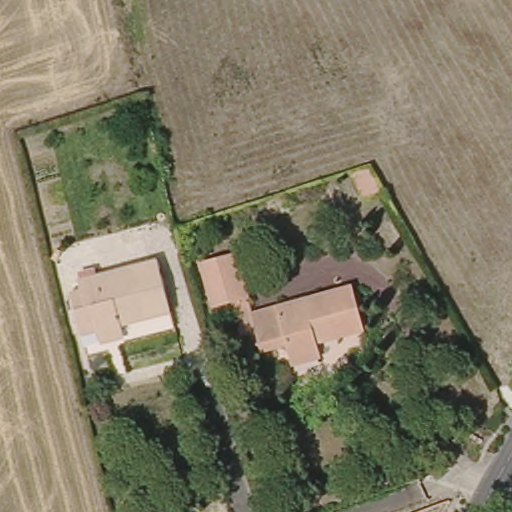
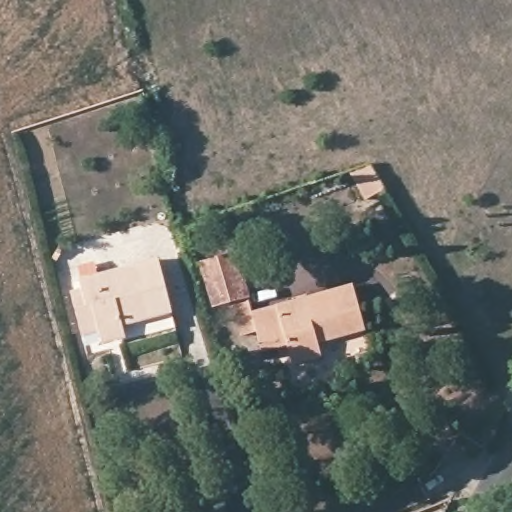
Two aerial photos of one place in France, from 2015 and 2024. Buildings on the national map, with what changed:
unchanged [(389,174),(371,185),(354,157),(373,150),(389,174)]
unchanged [(126,264),(158,253),(173,302),(124,320),(127,330),(103,338),(99,326),(84,331),(73,293),(84,290),(79,275),(100,268),(103,280),(128,270),(126,264)]
unchanged [(296,371),(291,352),(279,356),(267,360),(261,340),(246,345),(238,321),(234,312),(216,318),(208,293),(202,275),(234,264),(252,316),(351,283),(365,326),(320,342),(324,361),(296,371)]

